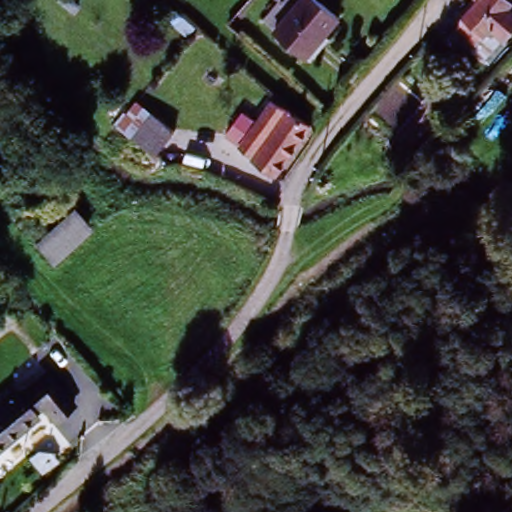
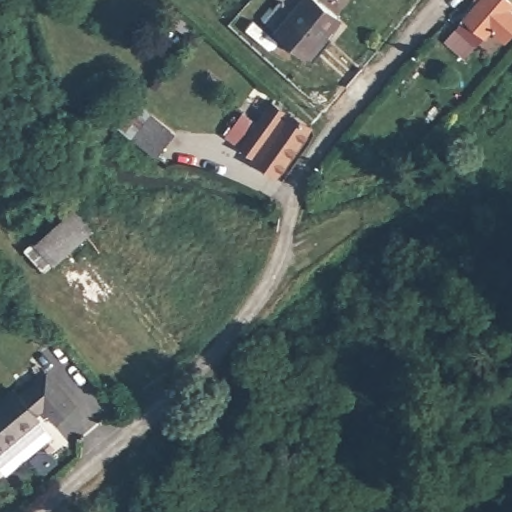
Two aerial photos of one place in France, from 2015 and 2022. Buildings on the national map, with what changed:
unchanged [(341,20),(307,61),(266,26),(282,6),(275,0),(317,0),(341,20)]
unchanged [(461,56),(442,40),(479,0),(500,0),(507,6),(502,12),(512,20),(512,28),(498,44),(482,30),(461,56)]
unchanged [(312,124),(272,174),(252,158),(255,155),(241,144),(277,101),(290,113),(293,110),(312,124)]
unchanged [(149,121),(169,136),(153,157),(133,141),(149,121)]
unchanged [(33,243),(73,207),(92,229),(54,266),(33,243)]
unchanged [(42,406),(33,414),(36,417),(0,449),(0,402),(12,391),(16,396),(43,371),(71,404),(54,419),(42,406)]

